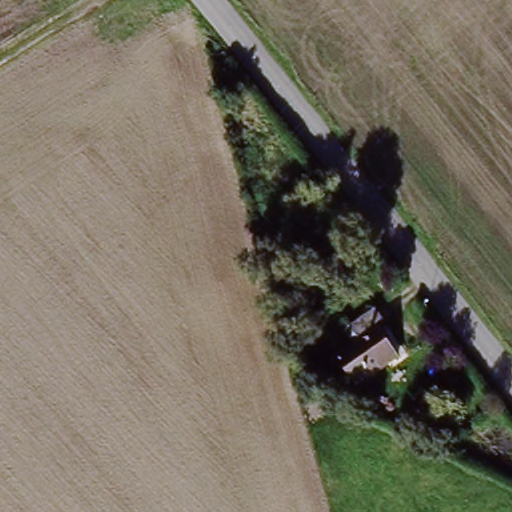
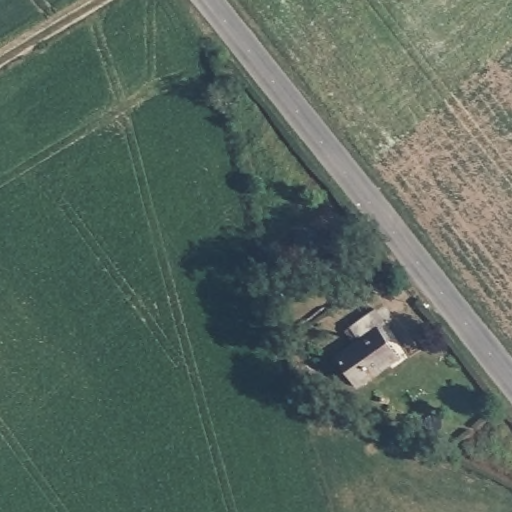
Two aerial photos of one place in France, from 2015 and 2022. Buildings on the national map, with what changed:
unchanged [(357,296),(295,323),(289,310),(351,283),(357,296)]
unchanged [(360,392),(338,364),(360,347),(350,334),(375,314),(386,326),(377,334),(398,361),(360,392)]

